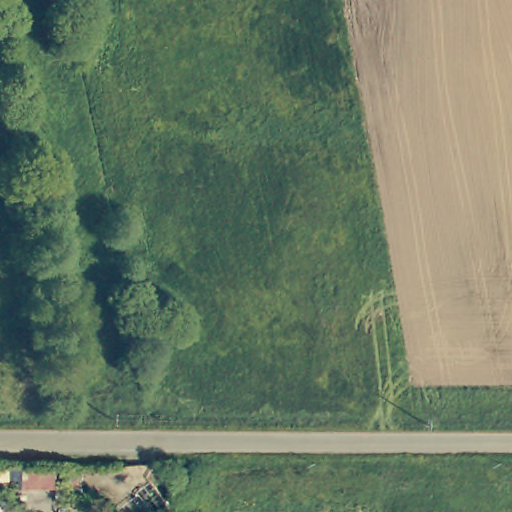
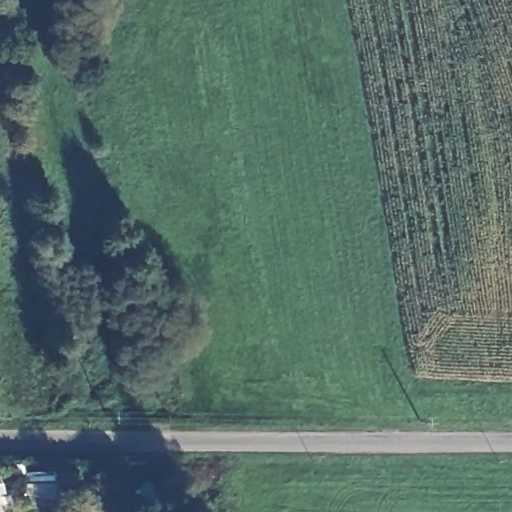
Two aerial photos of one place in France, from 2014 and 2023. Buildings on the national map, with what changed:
unchanged [(60,488),(21,488),(20,480),(4,479),(3,469),(60,469),(60,488)]
unchanged [(0,497),(0,489),(2,497),(0,497)]

